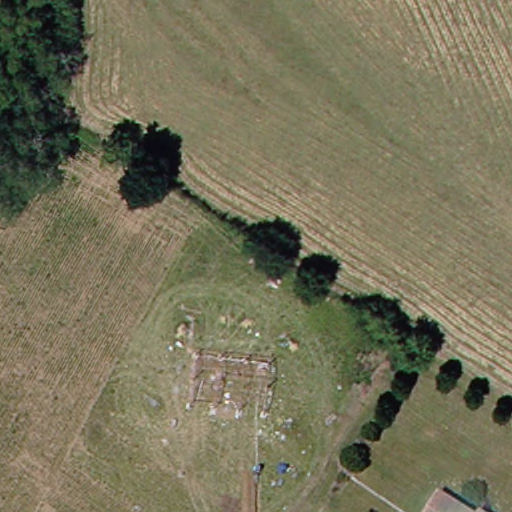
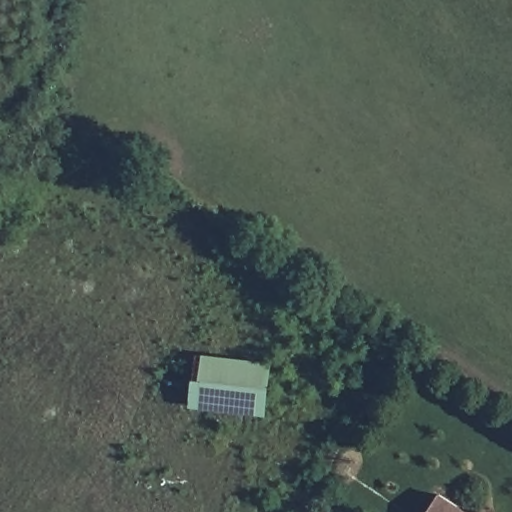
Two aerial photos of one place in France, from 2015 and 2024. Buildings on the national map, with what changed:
new [(265,416),(189,407),(193,379),(199,379),(202,354),(271,362),(265,416)]
unchanged [(453,512),(424,512),(433,498),(453,512)]

